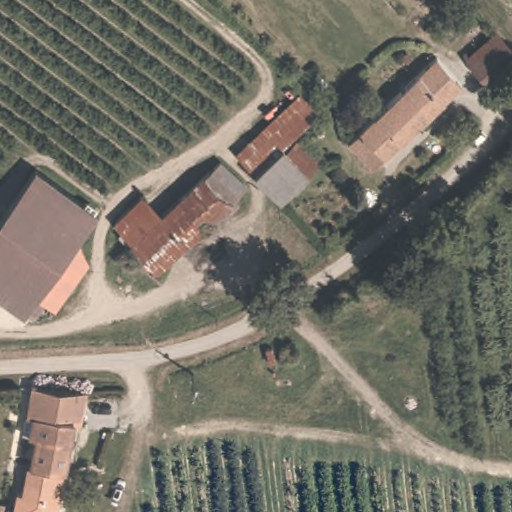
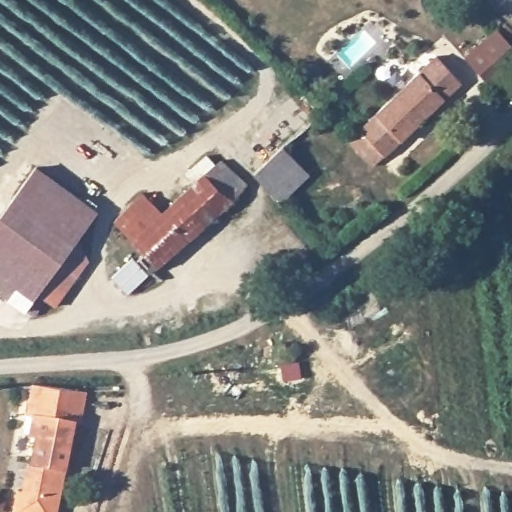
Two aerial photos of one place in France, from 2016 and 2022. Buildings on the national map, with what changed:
unchanged [(512,48),(512,74),(496,87),(468,53),(496,30),(512,48)]
unchanged [(434,54),(458,80),(371,166),(345,140),(434,54)]
unchanged [(247,153),(307,97),(322,113),(286,147),(262,171),(247,153)]
unchanged [(262,171),(286,147),(311,174),(284,199),(260,173),(262,171)]
unchanged [(144,190),(164,209),(224,158),(249,183),(160,269),(114,218),(144,190)]
unchanged [(36,164),(95,209),(35,290),(44,296),(30,313),(0,290),(0,214),(36,164)]
unchanged [(281,358),(280,355),(280,350),(282,341),(294,343),(292,353),(289,359),(287,361),(283,360),(281,358)]
unchanged [(62,512),(26,512),(20,510),(24,484),(34,485),(41,428),(27,426),(33,377),(35,376),(88,386),(82,420),(77,420),(62,512)]

